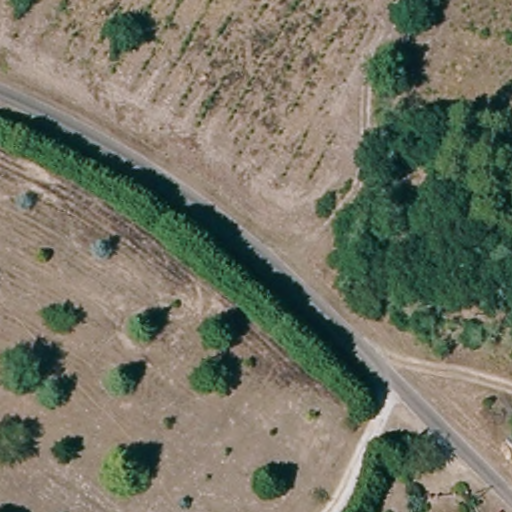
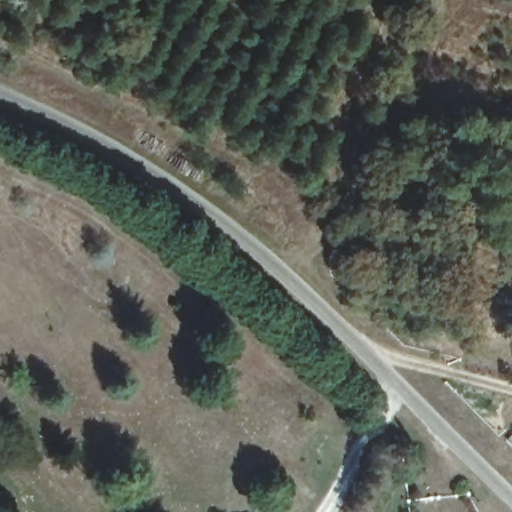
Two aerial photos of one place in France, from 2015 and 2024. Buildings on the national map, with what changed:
unchanged [(512,437),(512,443),(508,440),(512,437)]

